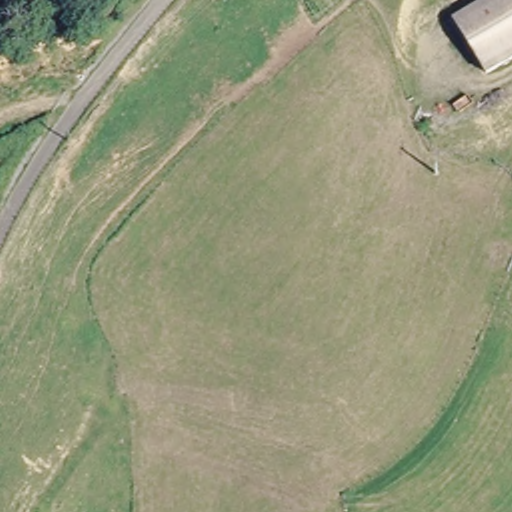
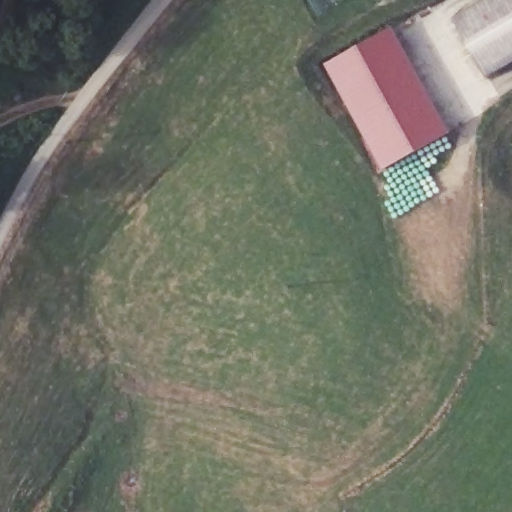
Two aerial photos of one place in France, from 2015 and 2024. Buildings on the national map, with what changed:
unchanged [(488,76),(454,17),(483,0),(512,0),(512,62),(488,76)]
new [(326,65),(392,29),(450,132),(385,168),(326,65)]

